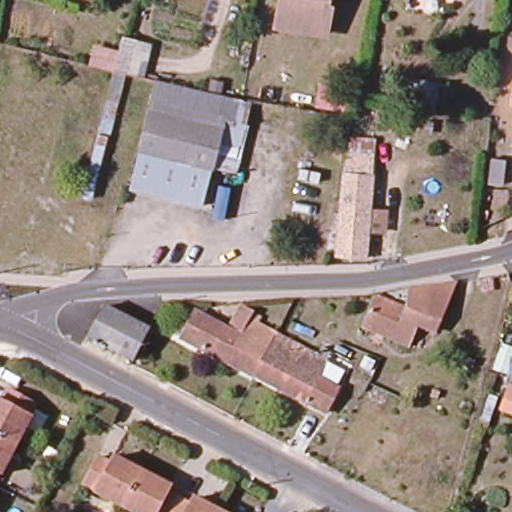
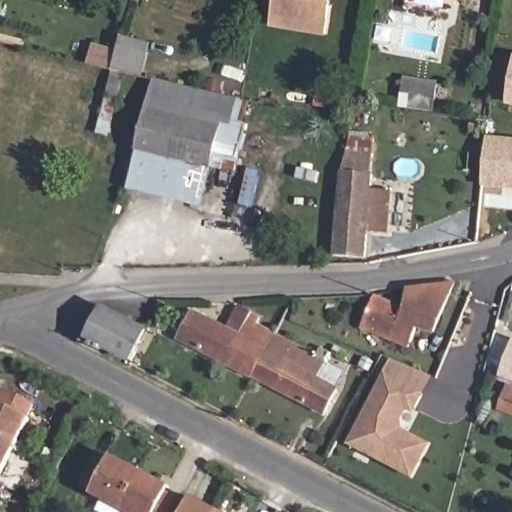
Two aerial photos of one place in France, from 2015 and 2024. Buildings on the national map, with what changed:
unchanged [(277,25),(281,0),(325,0),(325,5),(331,6),(326,34),(277,25)]
unchanged [(121,41),(149,48),(140,80),(125,78),(108,140),(105,139),(88,203),(80,202),(121,41)]
unchanged [(400,81),(431,86),(428,111),(396,106),(400,81)]
unchanged [(151,83),(248,105),(242,128),(246,129),(236,166),(212,160),(209,172),(135,155),(151,83)]
new [(483,187),(488,138),(512,140),(512,189),(483,187)]
unchanged [(336,258),(341,184),(348,154),(351,142),(375,143),(374,157),(365,260),(336,258)]
unchanged [(200,207),(129,188),(135,155),(209,172),(200,207)]
unchanged [(359,333),(374,302),(405,314),(408,296),(437,292),(455,290),(432,337),(418,331),(407,353),(359,333)]
unchanged [(145,334),(128,368),(84,344),(100,312),(145,334)]
unchanged [(177,343),(191,318),(209,327),(219,332),(225,335),(237,313),(248,317),(257,322),(254,328),(273,339),(251,382),(177,343)]
unchanged [(321,363),(324,365),(301,409),(251,382),(273,339),(312,359),(316,353),(325,357),(321,363)]
new [(500,377),(512,342),(512,381),(500,377)]
new [(394,358),(433,378),(415,414),(409,411),(400,427),(432,443),(414,478),(350,440),(394,358)]
unchanged [(29,405),(23,416),(26,418),(13,445),(0,438),(0,395),(3,391),(29,405)]
unchanged [(512,393),(512,414),(500,410),(507,391),(512,393)]
unchanged [(485,400),(495,402),(485,432),(475,429),(485,400)]
unchanged [(0,470),(0,438),(13,445),(0,470)]
unchanged [(118,512),(91,498),(93,496),(81,489),(96,464),(107,470),(110,463),(136,477),(118,512)]
unchanged [(164,498),(175,503),(170,512),(118,512),(136,477),(166,493),(164,498)]
unchanged [(182,508),(187,510),(190,505),(204,512),(170,512),(175,503),(182,508)]

